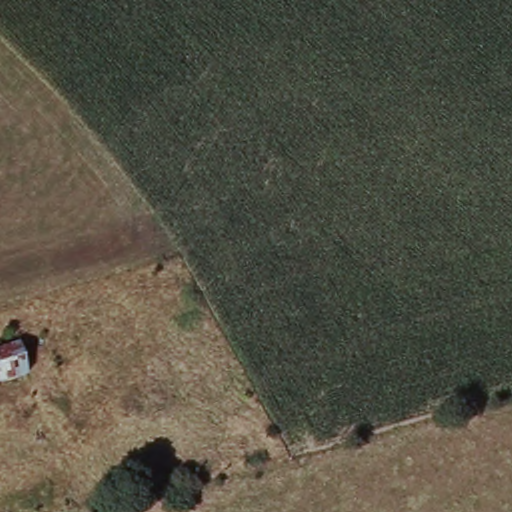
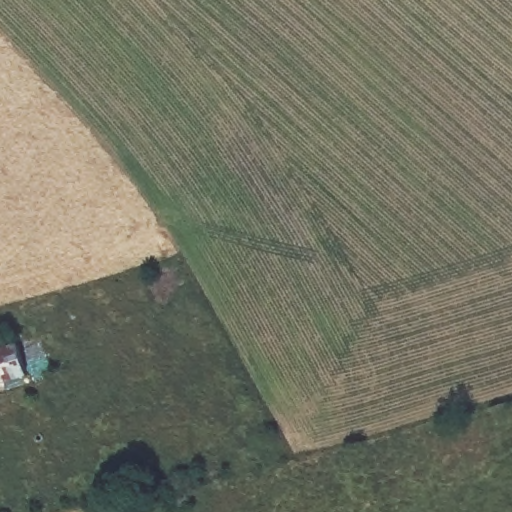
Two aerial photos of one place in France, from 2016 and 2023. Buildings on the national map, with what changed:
unchanged [(40,342),(49,373),(0,388),(0,354),(40,342)]

